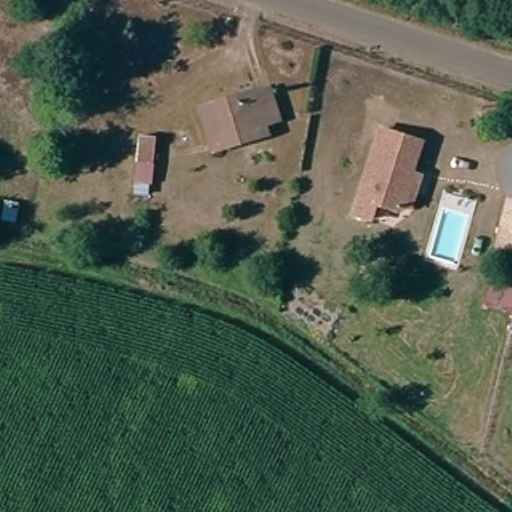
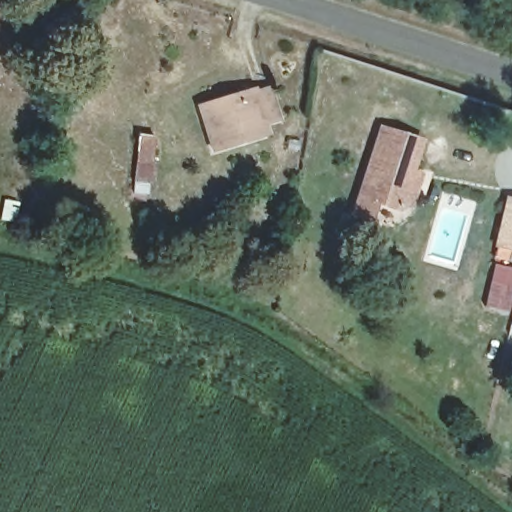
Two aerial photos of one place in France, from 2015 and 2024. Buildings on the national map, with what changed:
unchanged [(250,124),(254,138),(210,151),(194,106),(257,86),(258,89),(268,86),(276,111),(276,112),(275,113),(266,116),(267,119),(250,124)]
unchanged [(413,208),(403,205),(395,209),(374,203),(370,216),(351,210),(376,129),(417,141),(408,170),(423,175),(413,208)]
unchanged [(131,134),(151,136),(148,195),(129,193),(131,134)]
unchanged [(500,249),(500,248),(510,203),(512,203),(512,251),(500,249)]

